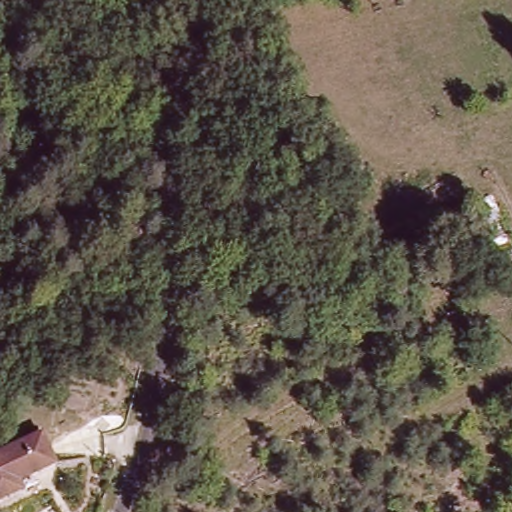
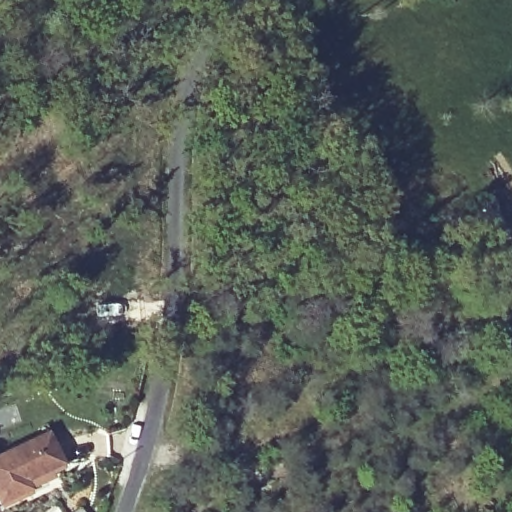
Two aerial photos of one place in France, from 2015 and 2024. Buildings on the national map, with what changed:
unchanged [(0,509),(0,459),(46,438),(59,466),(22,484),(28,497),(0,509)]

